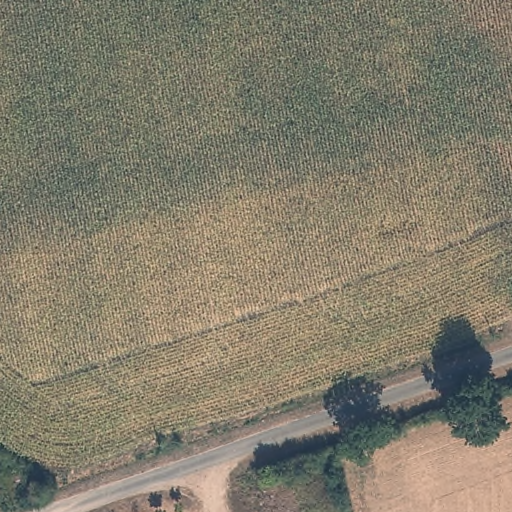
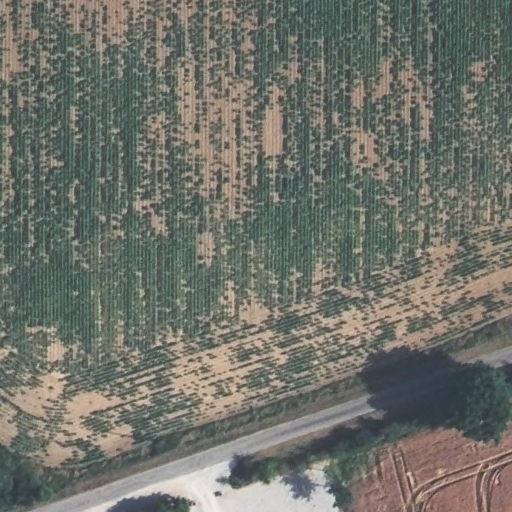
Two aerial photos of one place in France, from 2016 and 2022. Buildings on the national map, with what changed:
unchanged [(16,508),(5,480),(20,474),(24,482),(36,479),(43,498),(16,508)]

